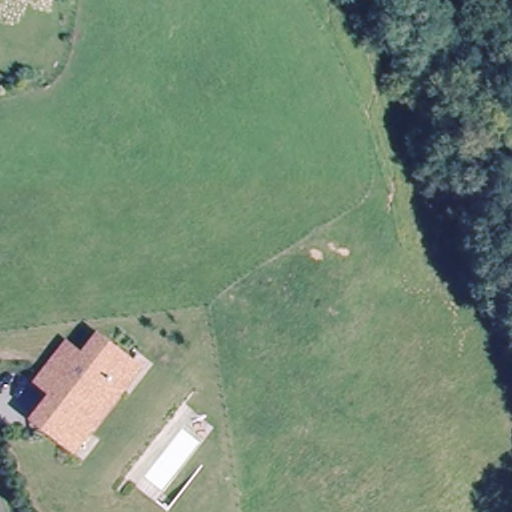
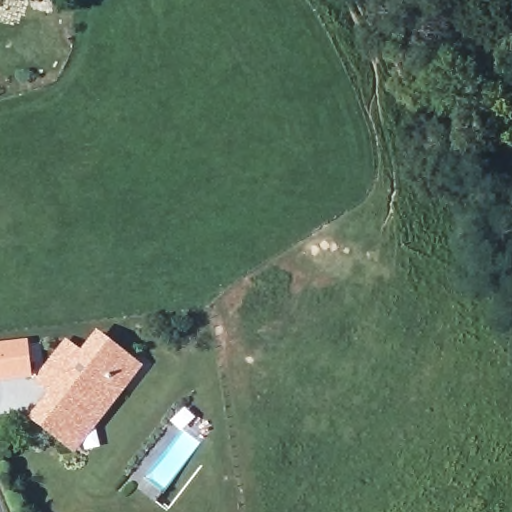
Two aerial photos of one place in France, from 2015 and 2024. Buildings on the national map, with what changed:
unchanged [(50,395),(33,381),(66,339),(83,350),(98,330),(144,366),(74,457),(29,421),(50,395)]
new [(34,377),(0,382),(0,342),(30,339),(34,377)]

